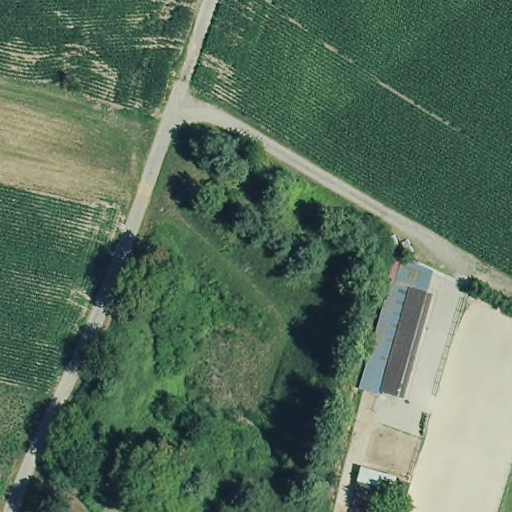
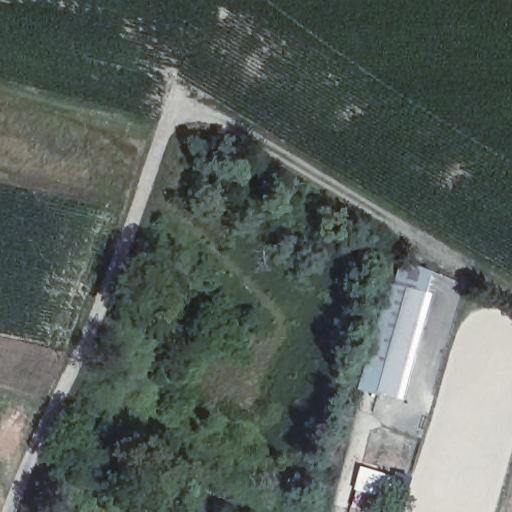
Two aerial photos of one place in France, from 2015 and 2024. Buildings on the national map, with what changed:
unchanged [(422,288),(394,391),(379,387),(407,284),(422,288)]

